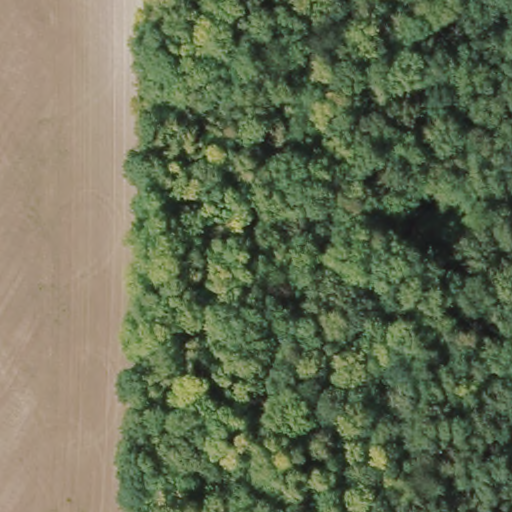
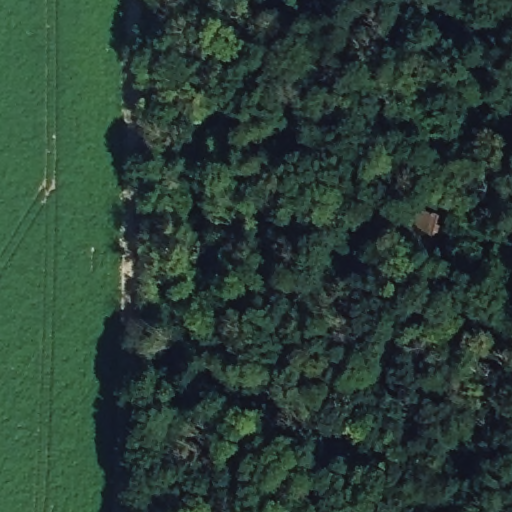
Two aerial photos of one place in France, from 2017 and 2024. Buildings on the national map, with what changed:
unchanged [(442,221),(430,250),(410,243),(416,211),(442,221)]

